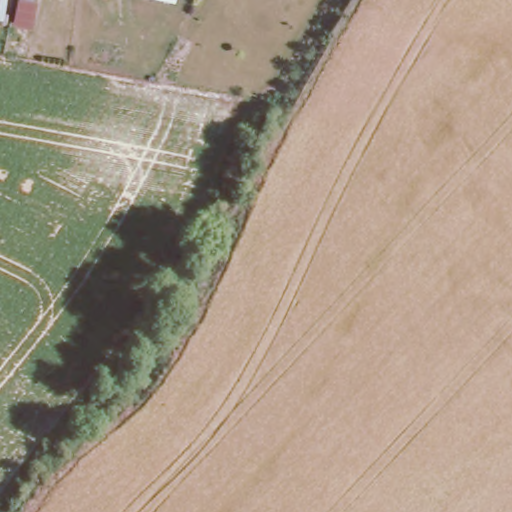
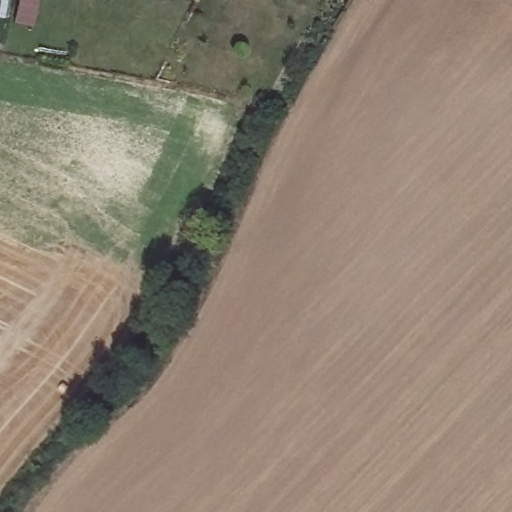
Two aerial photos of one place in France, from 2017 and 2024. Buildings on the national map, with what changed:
unchanged [(24,11),(20,28),(4,24),(1,23),(5,8),(7,0),(25,0),(27,0),(24,11)]
unchanged [(141,0),(174,0),(173,7),(141,0)]

